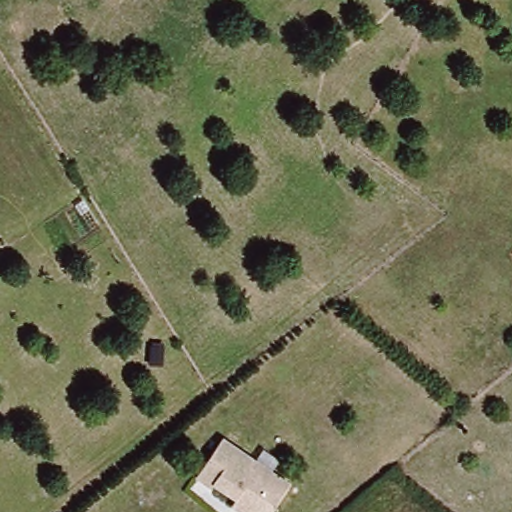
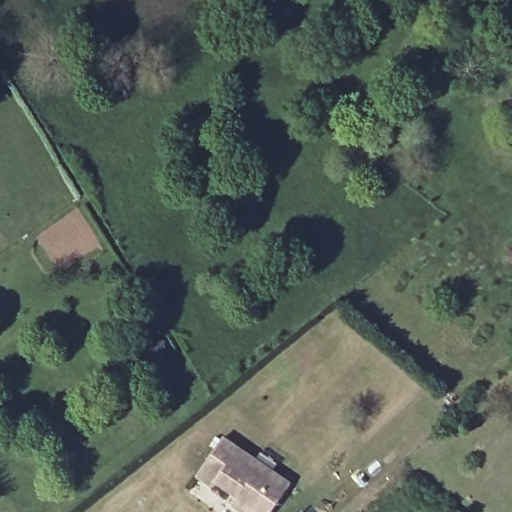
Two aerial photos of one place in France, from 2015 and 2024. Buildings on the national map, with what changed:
unchanged [(214,485),(212,490),(197,481),(200,476),(221,442),(289,485),(274,512),(239,512),(234,508),(238,501),(214,485)]

